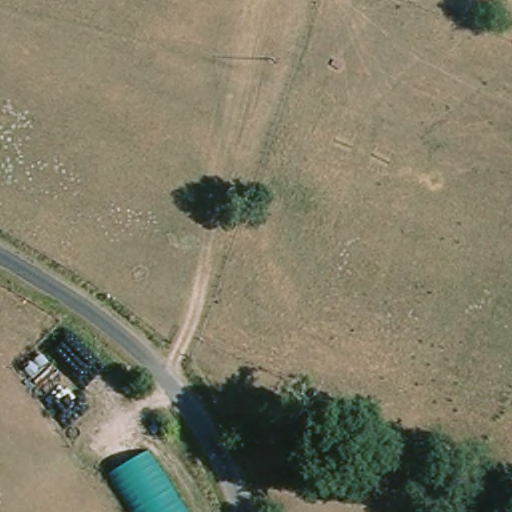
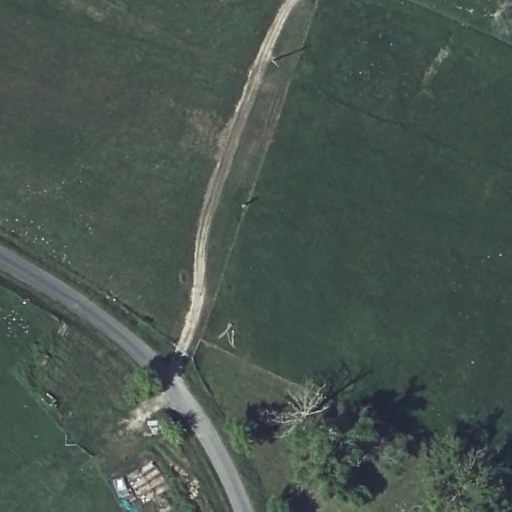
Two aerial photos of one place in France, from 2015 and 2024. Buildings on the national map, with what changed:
new [(187,512),(134,512),(110,472),(150,449),(187,512)]

